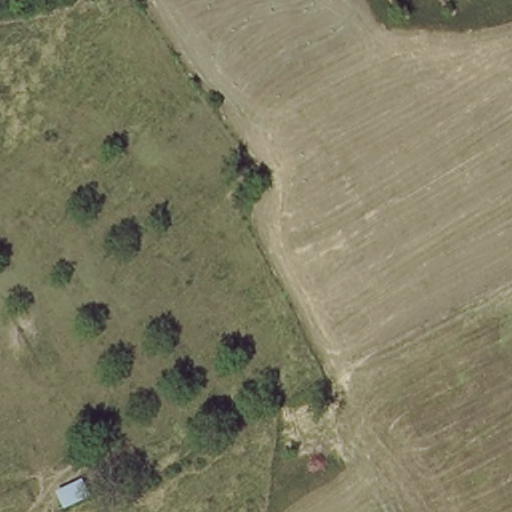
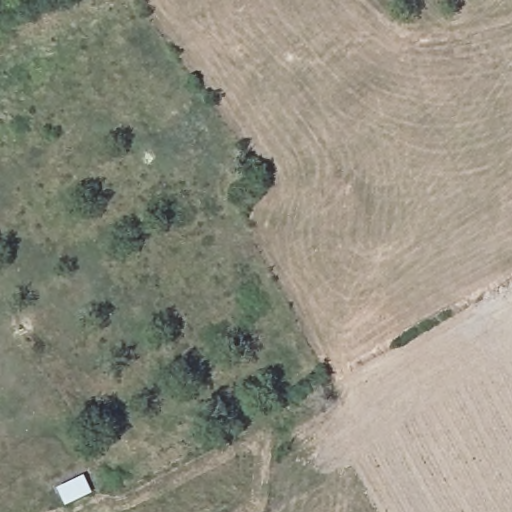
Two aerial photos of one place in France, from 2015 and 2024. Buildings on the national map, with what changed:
unchanged [(56,487),(81,476),(92,493),(67,504),(56,487)]

